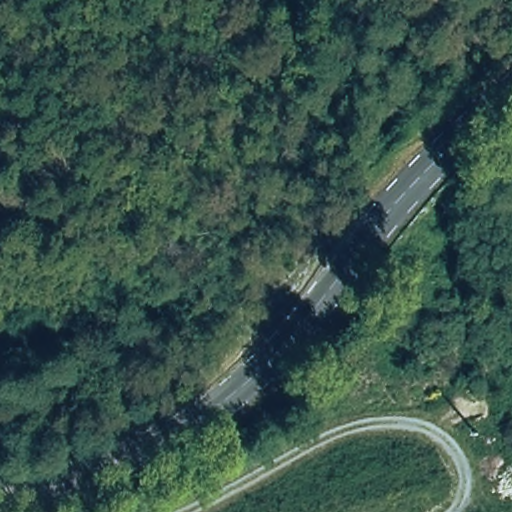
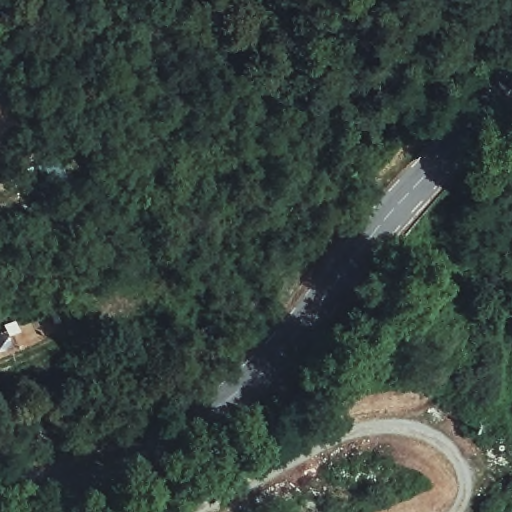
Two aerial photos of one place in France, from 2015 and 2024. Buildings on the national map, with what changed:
[]

